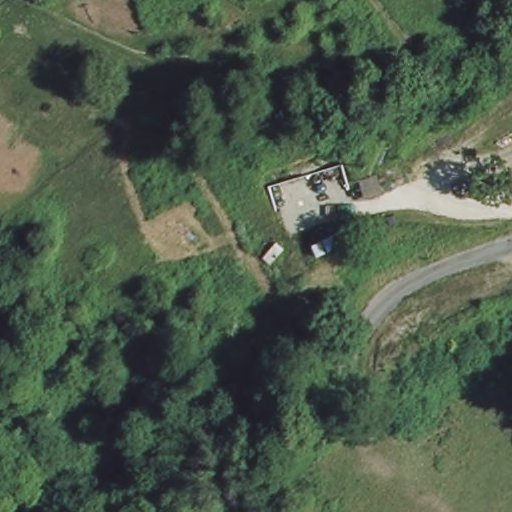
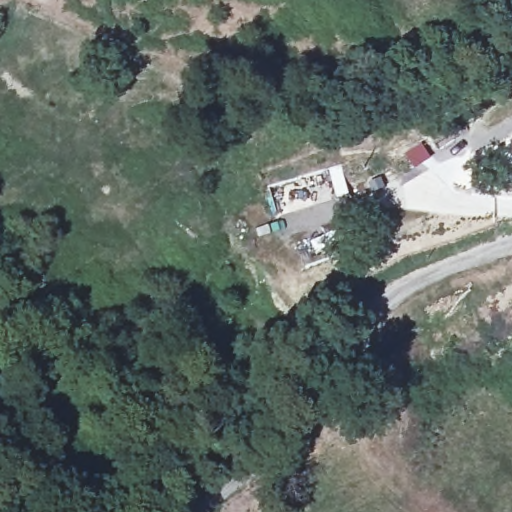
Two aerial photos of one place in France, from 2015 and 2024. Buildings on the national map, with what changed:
[]

